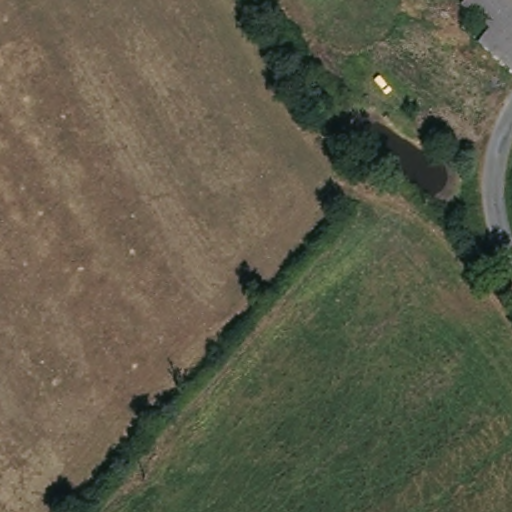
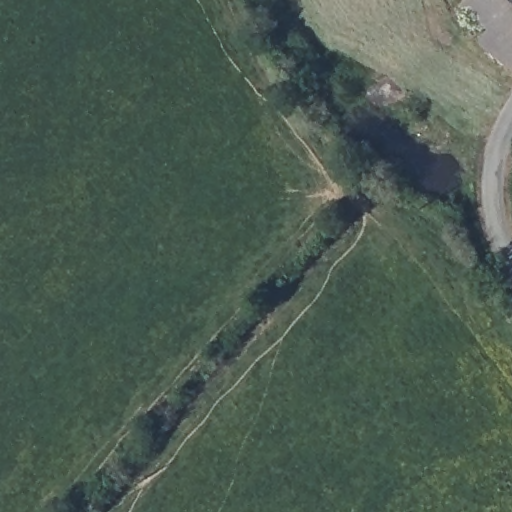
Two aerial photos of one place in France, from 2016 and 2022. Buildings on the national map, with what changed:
unchanged [(494,31),(468,8),(475,0),(512,0),(512,67),(486,45),(494,31)]

